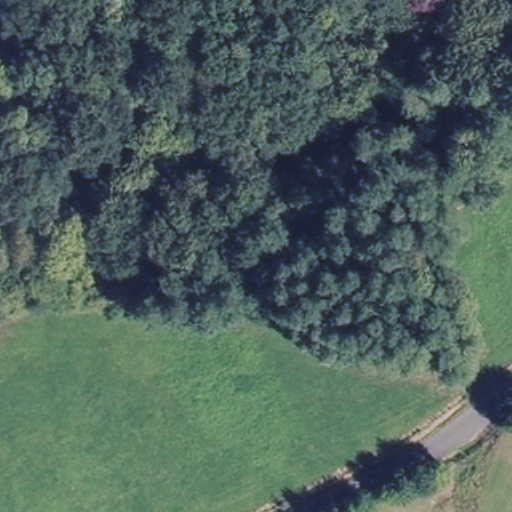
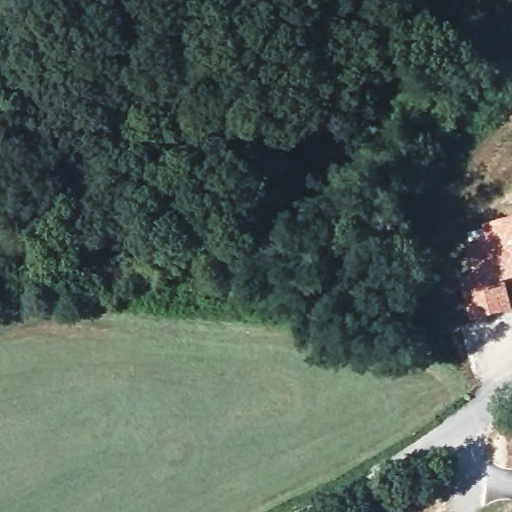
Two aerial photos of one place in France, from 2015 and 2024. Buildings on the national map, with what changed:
new [(461,262),(467,258),(464,233),(512,219),(512,281),(506,283),(512,305),(512,310),(471,320),(460,272),(463,270),(461,262)]

